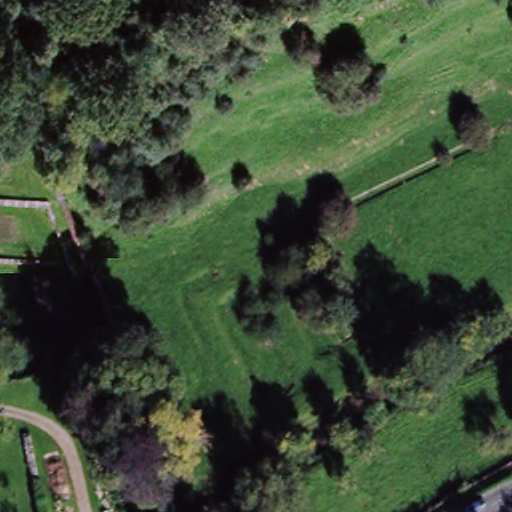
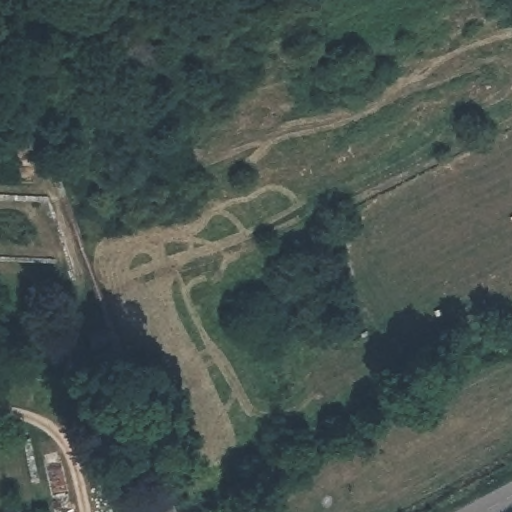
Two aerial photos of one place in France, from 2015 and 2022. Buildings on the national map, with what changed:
[]

